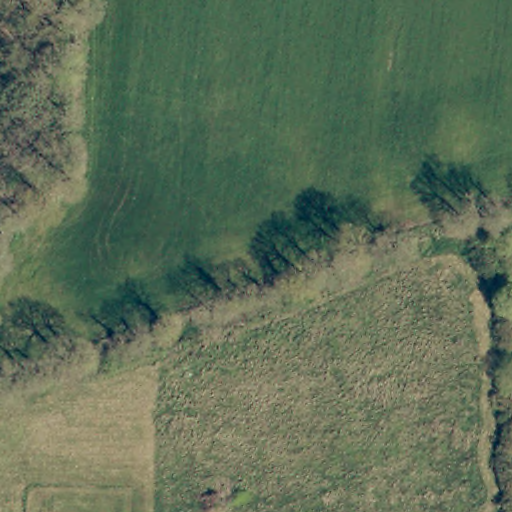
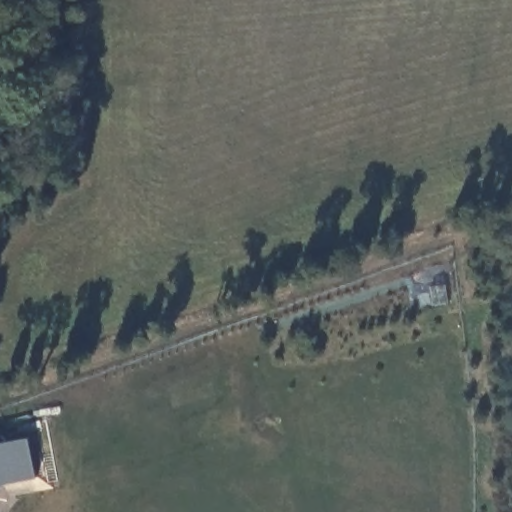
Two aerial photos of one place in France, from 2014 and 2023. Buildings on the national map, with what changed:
new [(29,437),(37,478),(4,485),(0,488),(0,442),(29,437)]

